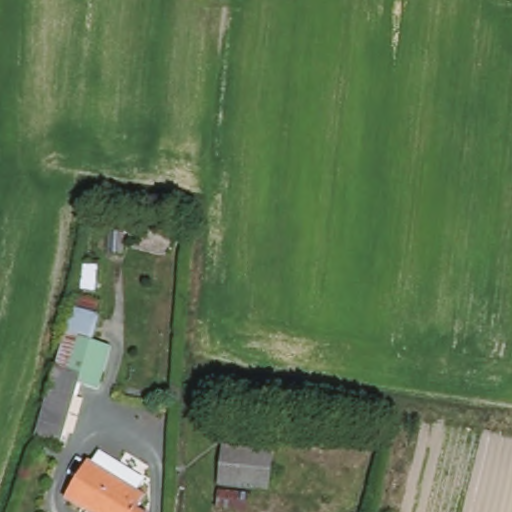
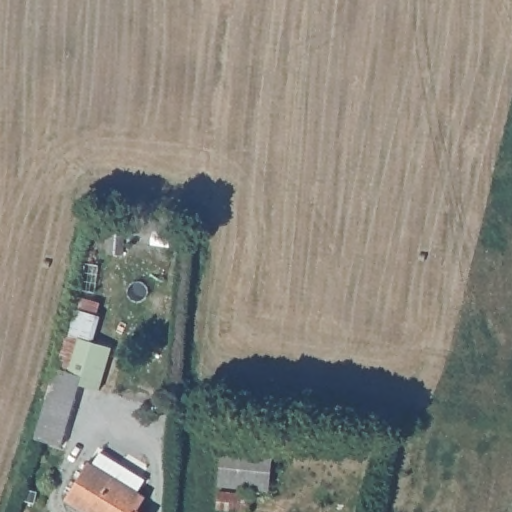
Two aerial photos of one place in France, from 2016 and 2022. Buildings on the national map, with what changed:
unchanged [(75,339),(102,344),(97,377),(80,374),(68,446),(42,441),(54,369),(62,337),(75,339)]
unchanged [(271,453),(267,487),(220,484),(221,450),(271,453)]
unchanged [(142,479),(136,489),(142,495),(135,508),(139,512),(86,512),(72,504),(101,454),(142,479)]
unchanged [(251,494),(250,512),(225,512),(217,512),(219,492),(251,494)]

